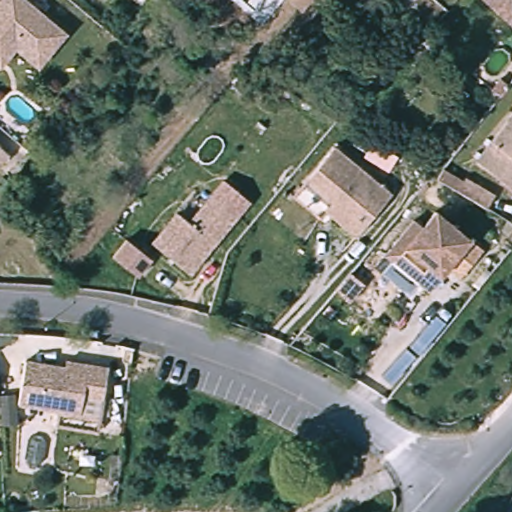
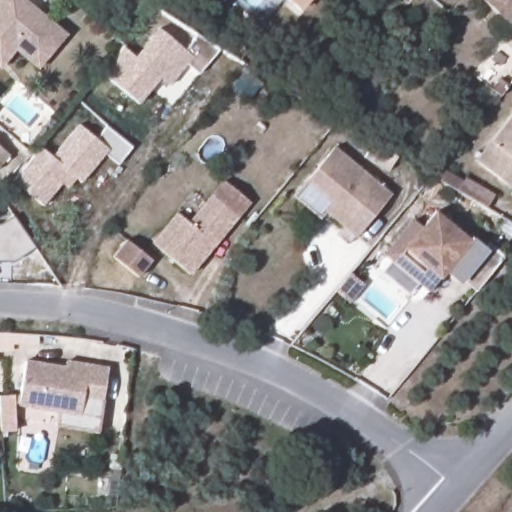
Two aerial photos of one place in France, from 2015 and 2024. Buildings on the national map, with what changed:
unchanged [(6,67),(0,62),(0,0),(33,0),(72,34),(48,61),(43,68),(21,49),(6,67)]
unchanged [(297,0),(312,0),(306,7),(297,0)]
unchanged [(512,0),(512,20),(490,0),(512,0)]
new [(221,50),(201,74),(187,63),(169,86),(161,80),(140,102),(104,73),(125,48),(138,56),(161,28),(187,49),(198,34),(221,50)]
unchanged [(512,106),(512,187),(473,155),(512,106)]
new [(134,148),(119,165),(107,155),(82,182),(77,177),(69,188),(63,184),(44,205),(15,180),(42,147),(53,155),(79,124),(97,137),(107,126),(134,148)]
new [(371,140),(397,156),(389,170),(363,155),(371,140)]
unchanged [(17,156),(3,172),(0,169),(0,142),(17,156)]
unchanged [(331,203),(305,181),(335,148),(392,196),(356,238),(342,227),(324,211),(331,203)]
unchanged [(491,196),(485,207),(472,199),(455,189),(436,178),(442,171),(459,181),(461,179),(491,196)]
unchanged [(244,217),(195,275),(157,243),(183,213),(195,223),(218,195),(244,217)]
new [(3,224),(12,216),(34,244),(28,253),(19,258),(0,260),(0,224),(3,224)]
unchanged [(473,257),(450,284),(439,273),(430,283),(418,273),(413,278),(389,259),(425,216),(473,257)]
unchanged [(123,239),(148,259),(134,276),(109,256),(123,239)]
unchanged [(78,428),(60,426),(62,410),(23,404),(30,361),(69,368),(70,361),(93,364),(113,368),(109,393),(102,432),(78,428)]

